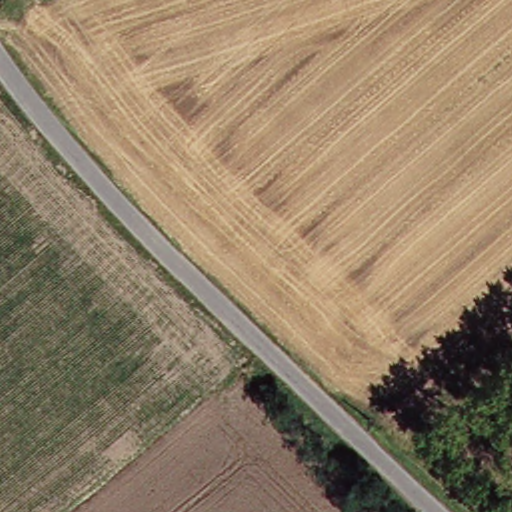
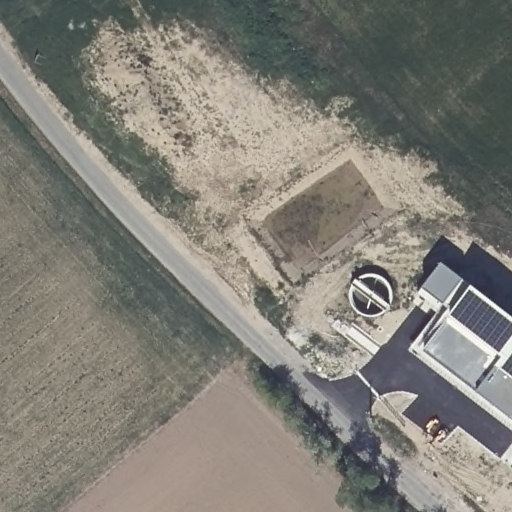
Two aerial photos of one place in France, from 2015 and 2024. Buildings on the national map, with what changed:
new [(479,389),(427,350),(449,322),(444,317),(452,308),(424,288),(444,261),(477,286),(512,314),(512,416),(479,389)]

